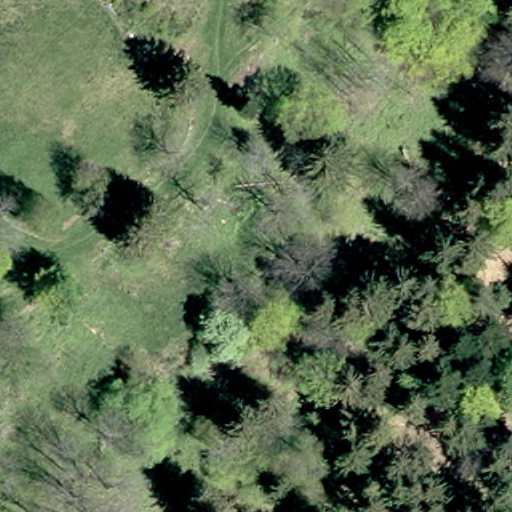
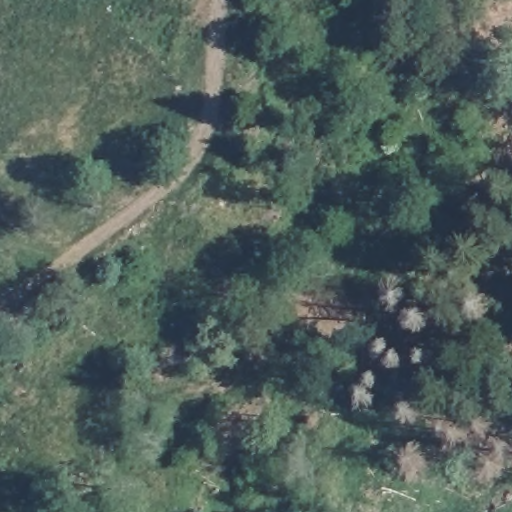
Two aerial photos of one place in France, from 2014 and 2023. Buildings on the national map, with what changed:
unchanged [(37,236),(3,216),(16,193),(50,214),(37,236)]

